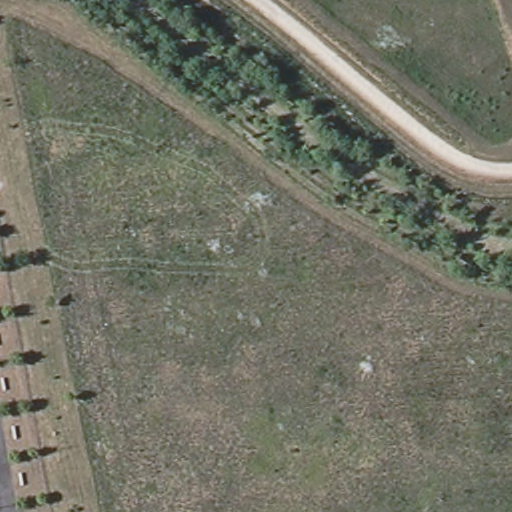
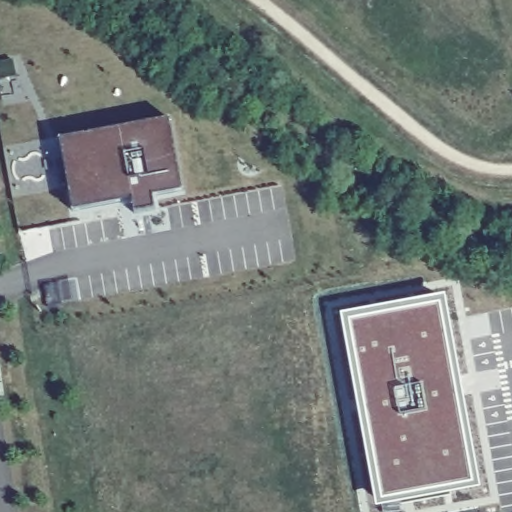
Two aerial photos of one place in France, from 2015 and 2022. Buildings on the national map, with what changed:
unchanged [(166,114),(180,186),(150,191),(152,204),(131,208),(129,195),(70,206),(57,133),(166,114)]
new [(72,275),(76,299),(46,304),(42,280),(72,275)]
new [(443,293),(480,486),(377,506),(342,313),(443,293)]

